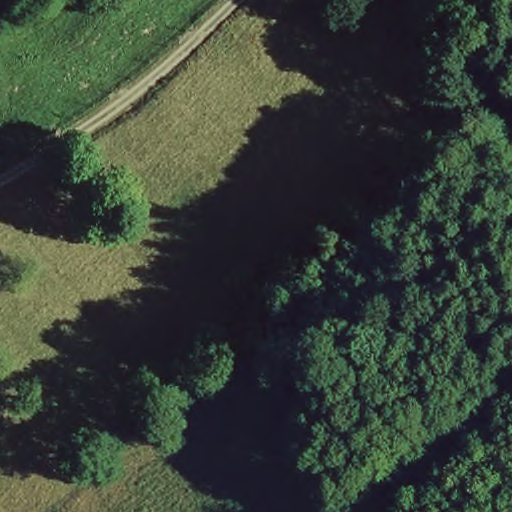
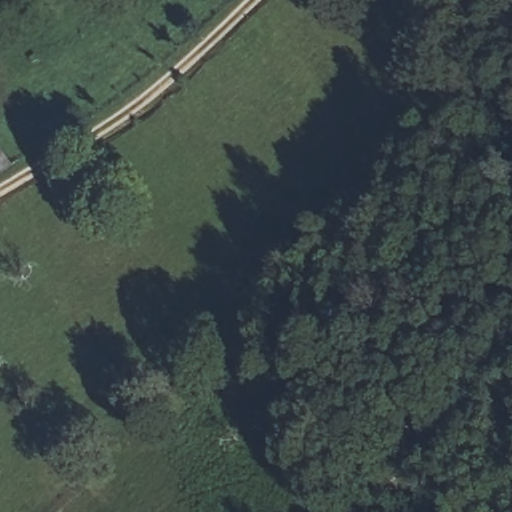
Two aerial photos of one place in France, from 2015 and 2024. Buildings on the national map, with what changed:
unchanged [(0,168),(0,149),(8,165),(0,168)]

